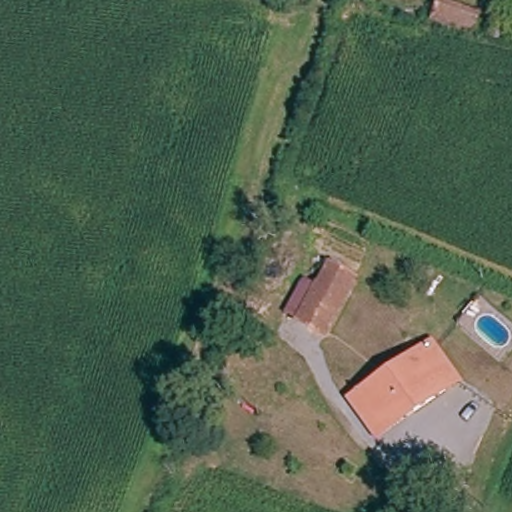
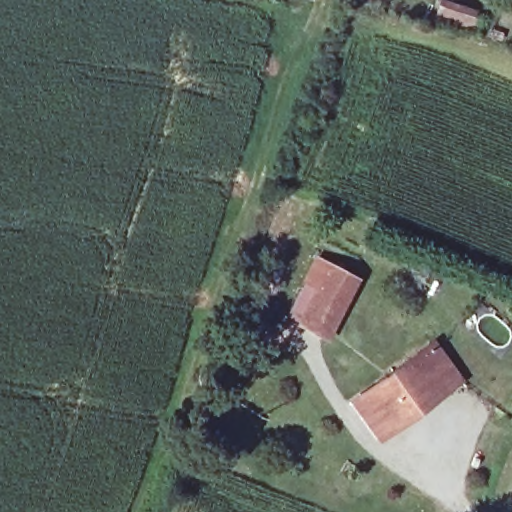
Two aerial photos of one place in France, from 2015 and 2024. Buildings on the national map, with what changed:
unchanged [(470,29),(440,16),(447,0),(452,0),(477,11),(470,29)]
unchanged [(364,278),(331,343),(284,317),(302,284),(315,292),(330,262),(364,278)]
unchanged [(353,401),(360,395),(429,338),(460,377),(417,412),(384,438),(353,401)]

